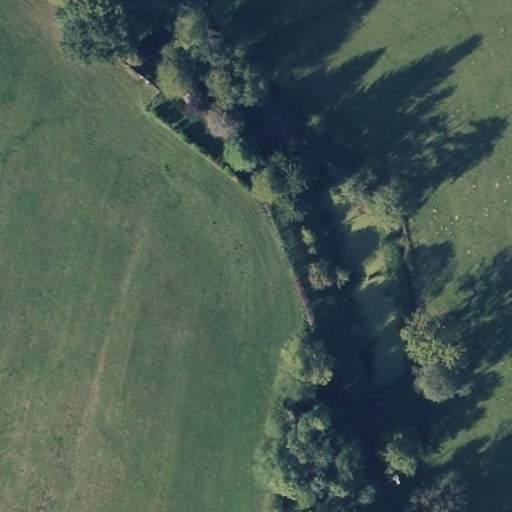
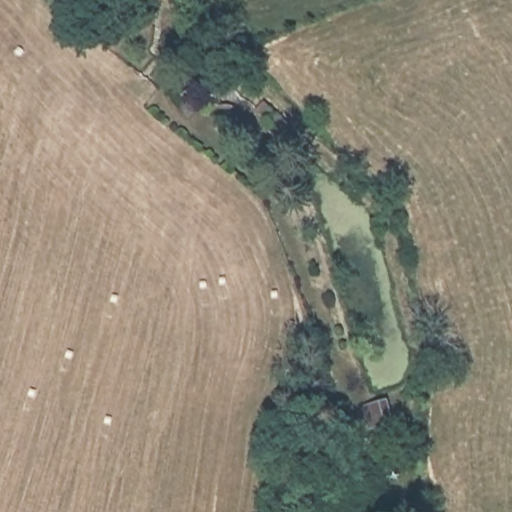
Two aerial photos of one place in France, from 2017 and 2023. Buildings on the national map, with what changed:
unchanged [(391,401),(395,426),(367,432),(361,406),(391,401)]

